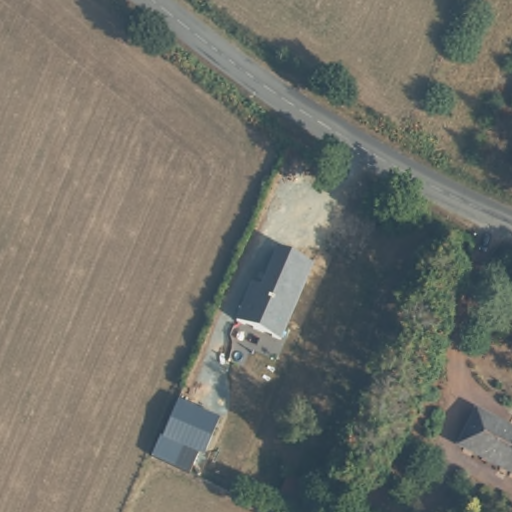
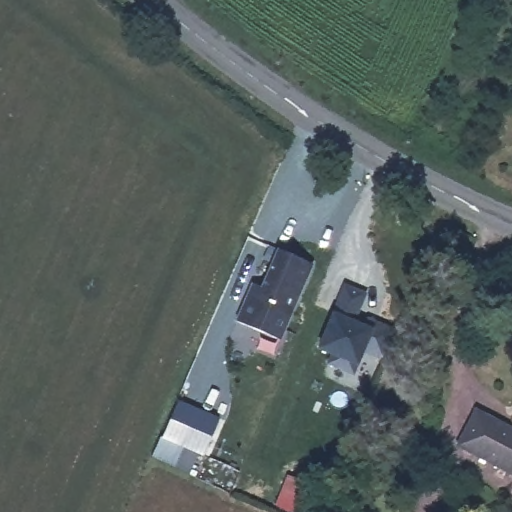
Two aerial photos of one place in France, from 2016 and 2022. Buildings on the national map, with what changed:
unchanged [(237,321),(252,287),(262,289),(277,252),(313,265),(281,340),(237,321)]
new [(332,311),(344,284),(366,293),(360,313),(388,327),(375,357),(363,352),(357,366),(353,375),(327,364),(331,355),(317,349),(332,311)]
unchanged [(151,456),(178,400),(217,418),(203,456),(197,453),(189,473),(151,456)]
unchanged [(477,409),(512,428),(512,475),(456,444),(477,409)]
unchanged [(371,512),(322,512),(328,496),(371,512)]

